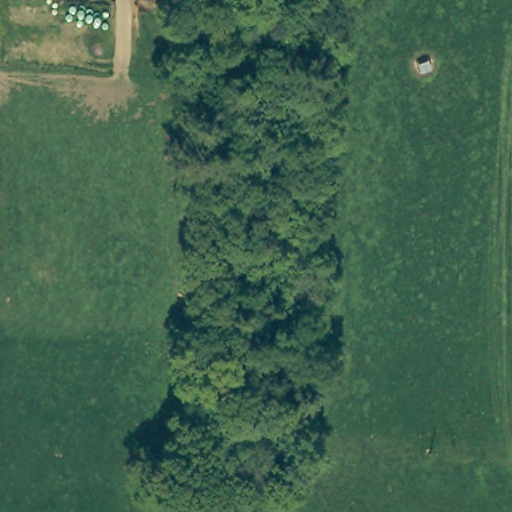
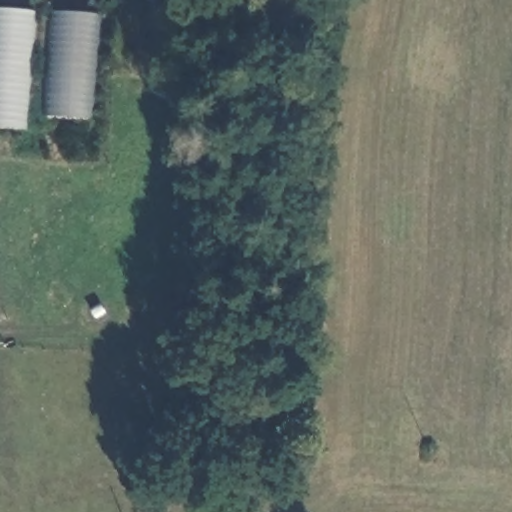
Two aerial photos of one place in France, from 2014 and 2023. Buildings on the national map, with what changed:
new [(0,131),(0,8),(38,11),(29,132),(0,131)]
new [(99,120),(46,118),(52,11),(103,15),(99,120)]

